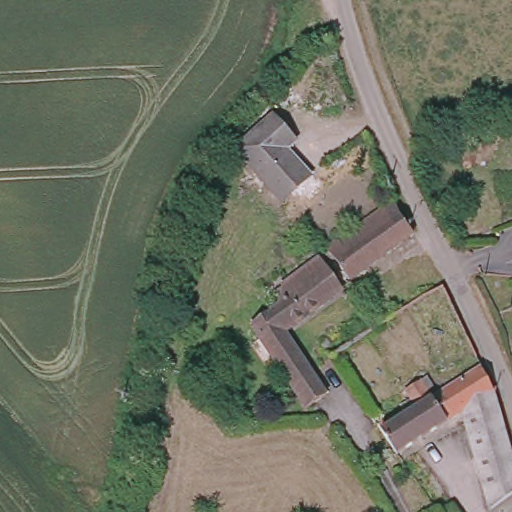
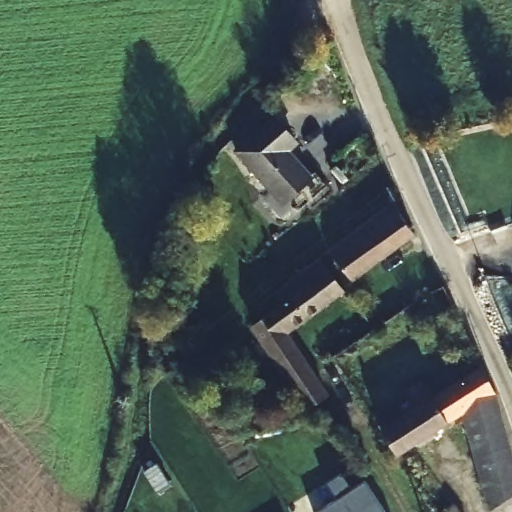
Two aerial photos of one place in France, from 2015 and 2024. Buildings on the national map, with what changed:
unchanged [(300,141),(291,150),(315,177),(287,201),(242,150),(279,117),(300,141)]
unchanged [(400,211),(399,212),(414,232),(375,260),(351,280),(327,248),(395,200),(400,211)]
unchanged [(282,308),(275,299),(283,292),(282,291),(320,262),(343,294),(285,337),(327,400),(307,413),(252,330),(282,308)]
unchanged [(512,453),(512,494),(490,510),(462,412),(447,422),(397,455),(382,430),(378,426),(385,422),(387,426),(407,415),(401,406),(412,400),(406,390),(421,380),(432,397),(481,365),(495,392),(512,453)]
new [(366,478),(388,512),(315,512),(337,497),(326,481),(342,470),(353,486),(366,478)]
unchanged [(460,512),(441,512),(454,503),(460,512)]

